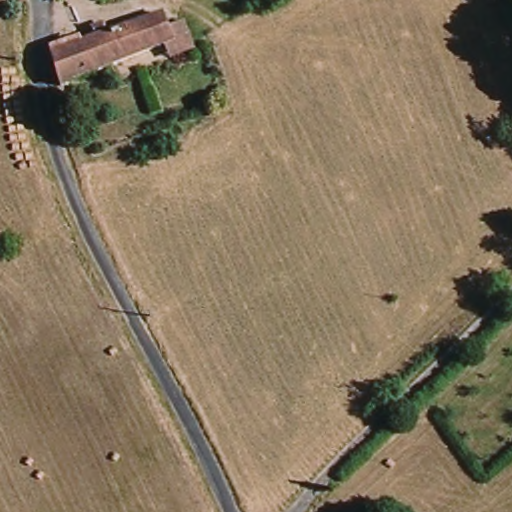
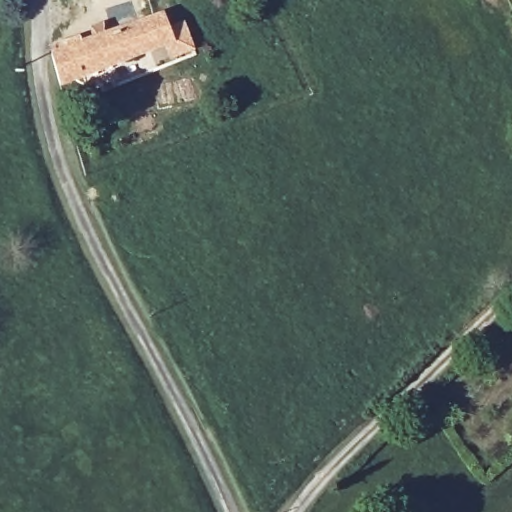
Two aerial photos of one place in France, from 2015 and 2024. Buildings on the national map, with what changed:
unchanged [(62,89),(55,54),(168,17),(176,33),(191,28),(200,54),(188,60),(180,64),(175,46),(62,89)]

